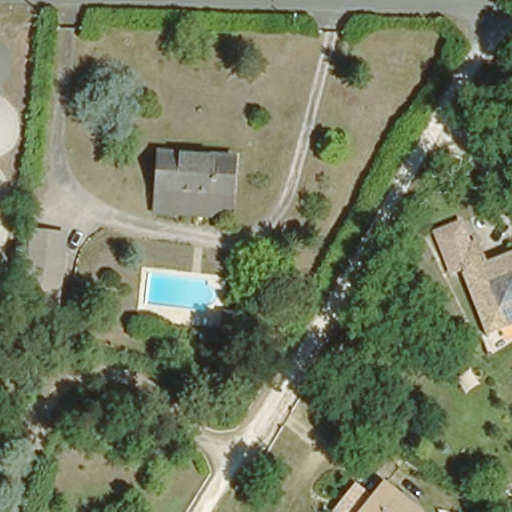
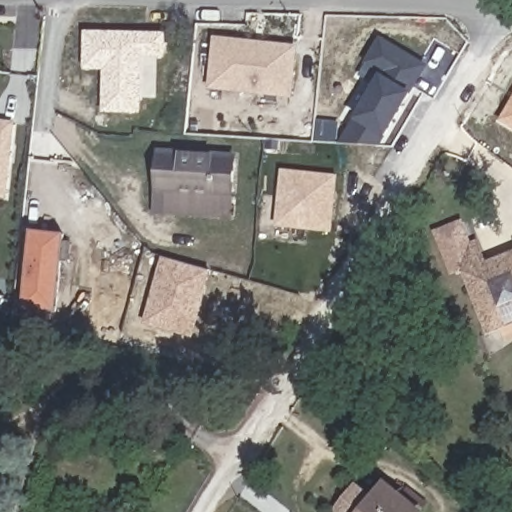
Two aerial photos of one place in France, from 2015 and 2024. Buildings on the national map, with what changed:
new [(83,30),(165,33),(165,58),(141,59),(141,114),(102,114),(101,70),(82,69),(83,30)]
new [(212,36),(298,45),(292,99),(206,89),(212,36)]
new [(380,145),(335,143),(370,84),(356,74),(365,61),(361,59),(377,36),(428,65),(380,145)]
new [(512,96),(512,129),(497,120),(512,96)]
new [(14,121),(5,199),(0,198),(0,120),(14,121)]
unchanged [(160,149),(236,153),(235,192),(160,190),(160,149)]
new [(280,169),(338,175),(331,233),(274,228),(280,169)]
unchanged [(235,192),(233,210),(158,209),(160,190),(235,192)]
unchanged [(463,264),(450,269),(432,229),(459,218),(468,240),(478,236),(487,259),(512,249),(512,318),(490,328),(463,264)]
unchanged [(20,314),(20,307),(29,232),(65,237),(55,310),(54,320),(20,314)]
new [(160,257),(210,271),(192,339),(141,324),(160,257)]
new [(10,315),(0,312),(0,296),(4,297),(3,300),(11,303),(10,315)]
unchanged [(377,484),(407,505),(415,512),(355,512),(377,484)]

